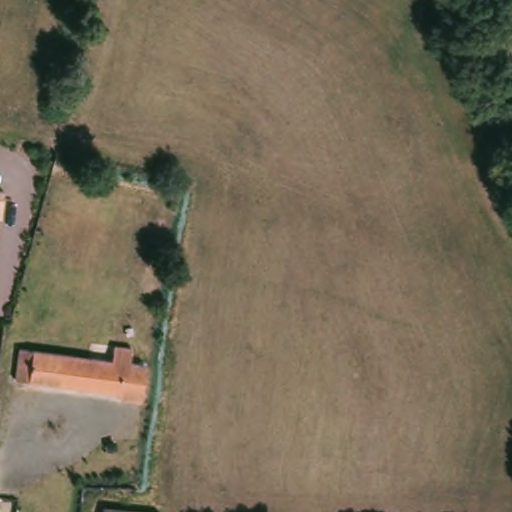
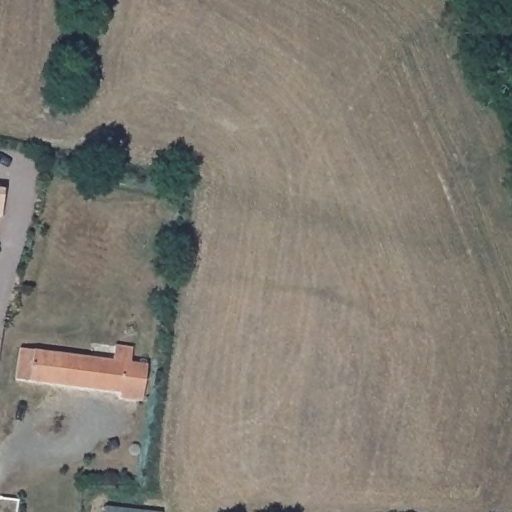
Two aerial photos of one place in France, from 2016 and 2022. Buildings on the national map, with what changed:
unchanged [(0,217),(0,175),(7,175),(5,190),(3,217),(0,217)]
unchanged [(114,398),(114,393),(10,380),(15,348),(107,361),(110,346),(127,349),(125,364),(141,366),(137,401),(114,398)]
unchanged [(100,508),(135,512),(100,512),(100,508)]

